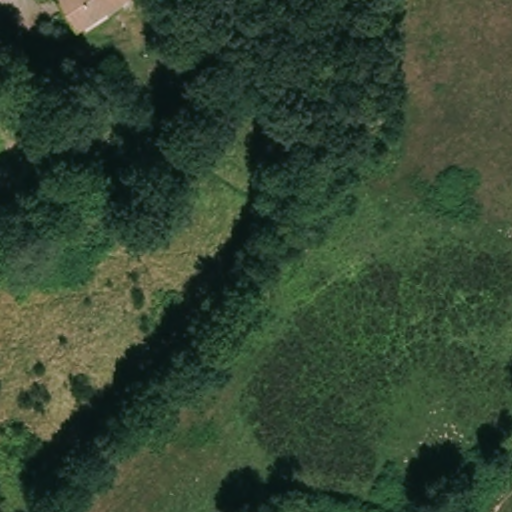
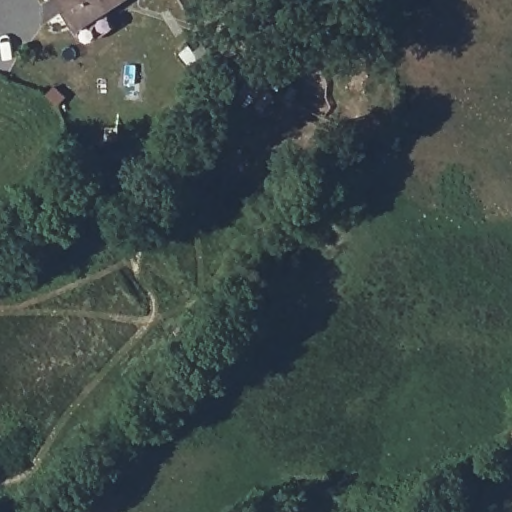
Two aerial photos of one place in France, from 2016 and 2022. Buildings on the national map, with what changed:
unchanged [(54,0),(116,0),(77,31),(54,0)]

